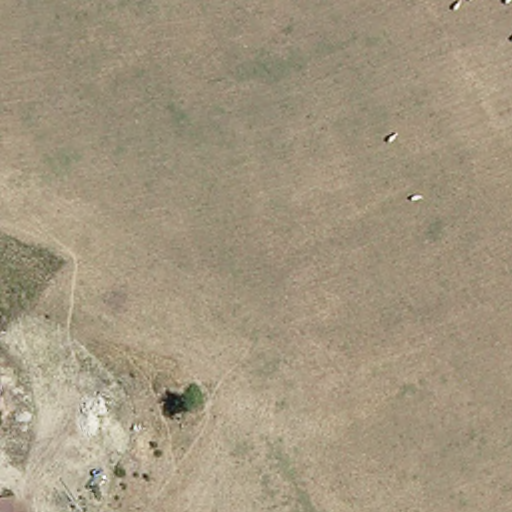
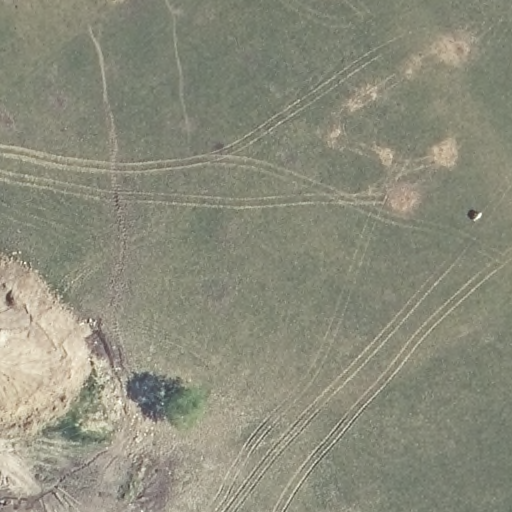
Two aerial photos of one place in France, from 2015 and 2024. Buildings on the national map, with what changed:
unchanged [(2,512),(0,512),(0,505),(2,512)]

